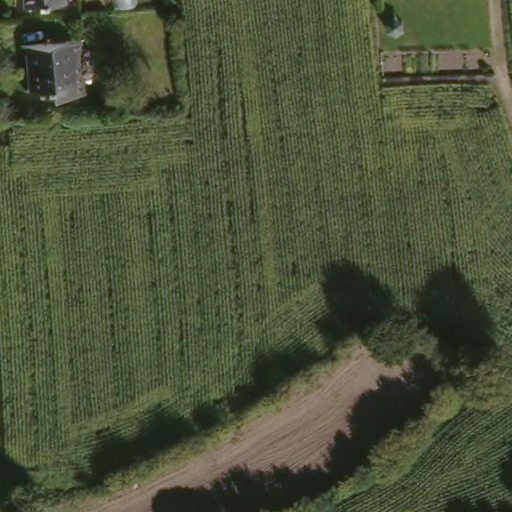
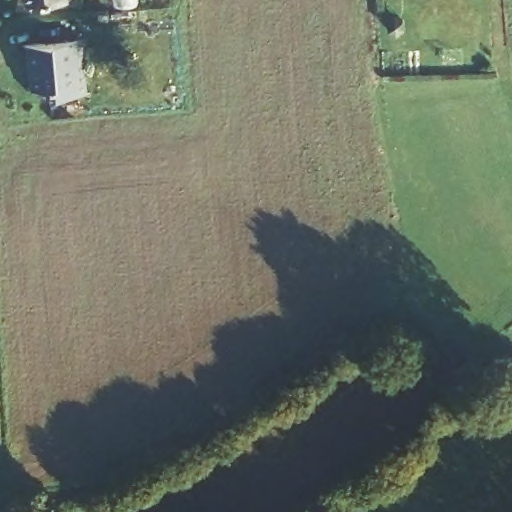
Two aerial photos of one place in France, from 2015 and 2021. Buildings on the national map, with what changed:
unchanged [(65,3),(27,6),(27,0),(65,0),(65,3)]
unchanged [(84,42),(90,101),(59,103),(59,89),(44,90),(41,43),(84,42)]

